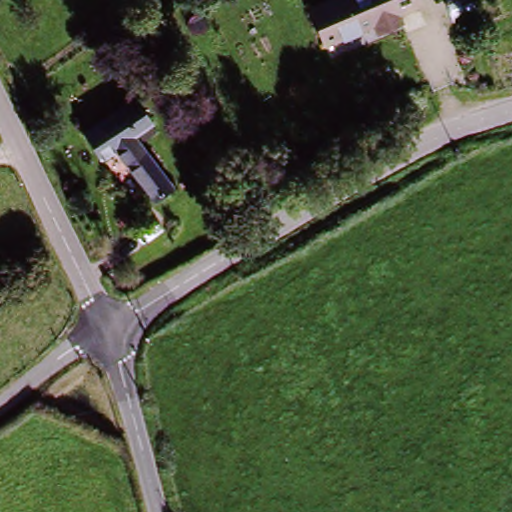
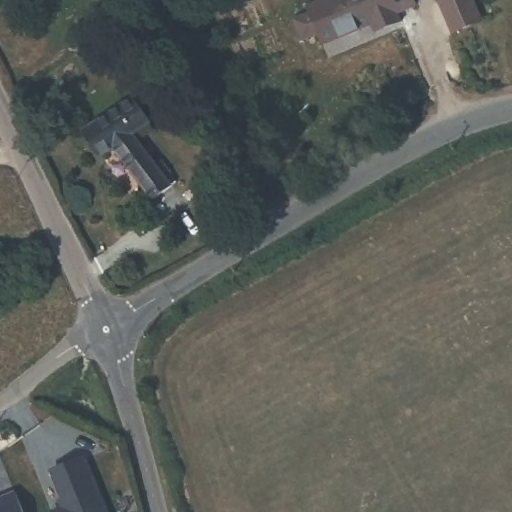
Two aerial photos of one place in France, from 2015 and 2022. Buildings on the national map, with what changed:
unchanged [(334,0),(399,0),(405,13),(385,21),(389,31),(367,39),(365,32),(312,56),(294,18),(334,0)]
unchanged [(477,7),(450,18),(444,0),(474,0),(477,7)]
unchanged [(149,198),(110,149),(105,153),(95,158),(91,152),(83,139),(96,130),(115,114),(131,102),(142,116),(148,124),(132,136),(168,183),(149,198)]
new [(67,502),(65,496),(63,497),(51,467),(82,455),(106,512),(52,512),(51,508),(67,502)]
new [(21,512),(0,512),(0,500),(15,494),(21,512)]

